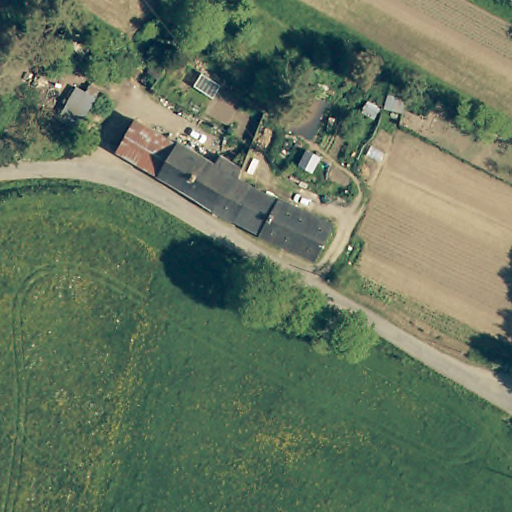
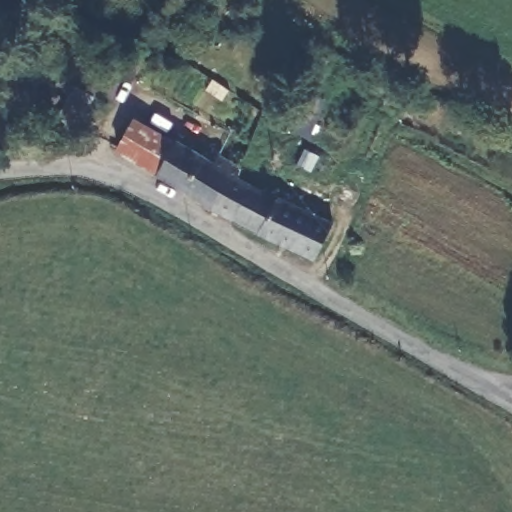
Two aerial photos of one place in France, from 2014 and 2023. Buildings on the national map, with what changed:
unchanged [(85,90),(87,84),(100,90),(83,128),(64,120),(79,88),(85,90)]
unchanged [(245,228),(117,151),(134,123),(156,136),(159,131),(215,163),(219,154),(245,169),(239,184),(251,190),(262,194),(245,228)]
unchanged [(262,194),(335,231),(318,265),(245,228),(262,194)]

